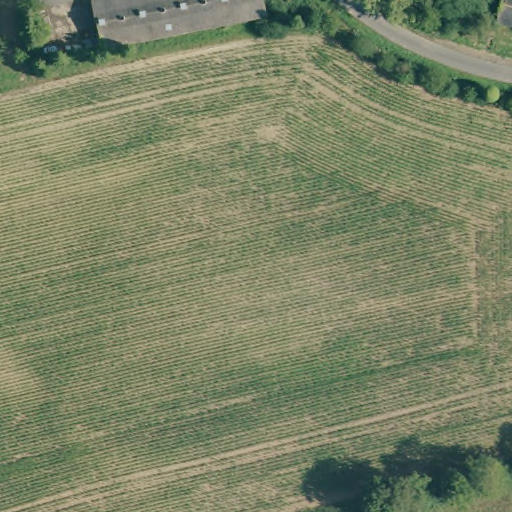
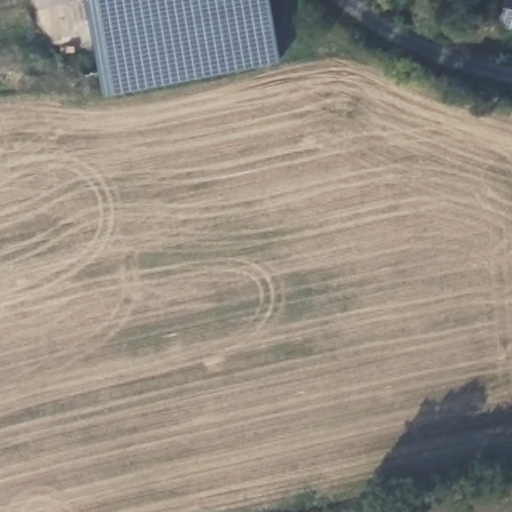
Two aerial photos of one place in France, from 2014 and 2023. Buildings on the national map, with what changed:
new [(82,0),(264,0),(277,62),(100,96),(82,0)]
demolished [(265,0),(268,10),(102,48),(92,0),(265,0)]
unchanged [(499,15),(503,0),(512,0),(512,17),(499,15)]
unchanged [(497,26),(499,15),(512,17),(512,30),(497,26)]

